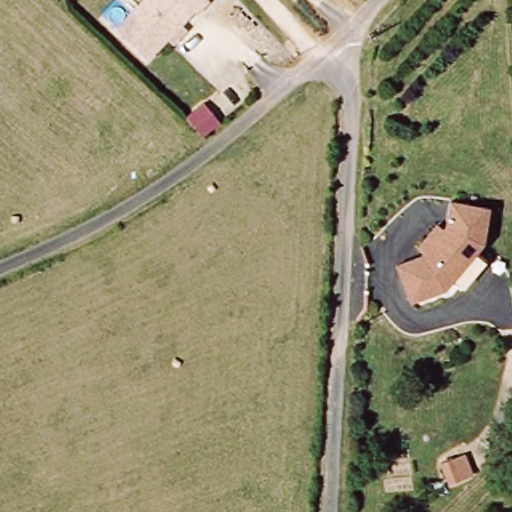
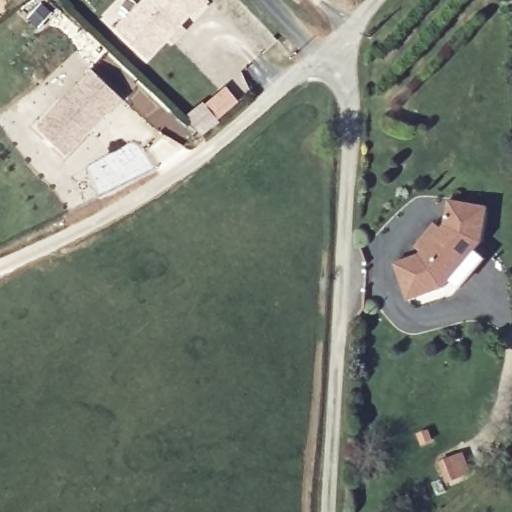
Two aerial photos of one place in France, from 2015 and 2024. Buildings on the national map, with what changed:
unchanged [(148,60),(119,30),(148,0),(208,0),(211,3),(198,15),(195,12),(148,60)]
new [(123,100),(110,115),(107,112),(65,157),(33,127),(90,68),(123,100)]
new [(200,102),(217,121),(200,136),(182,118),(200,102)]
unchanged [(450,285),(442,294),(408,306),(397,267),(427,255),(419,246),(437,228),(447,236),(450,220),(452,206),(467,209),(490,214),(482,248),(474,257),(485,267),(459,295),(450,285)]

